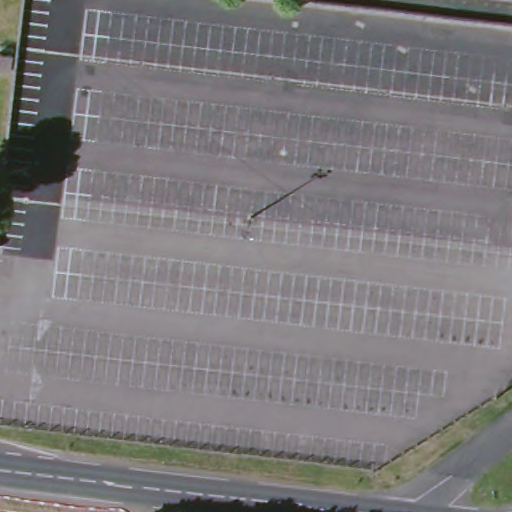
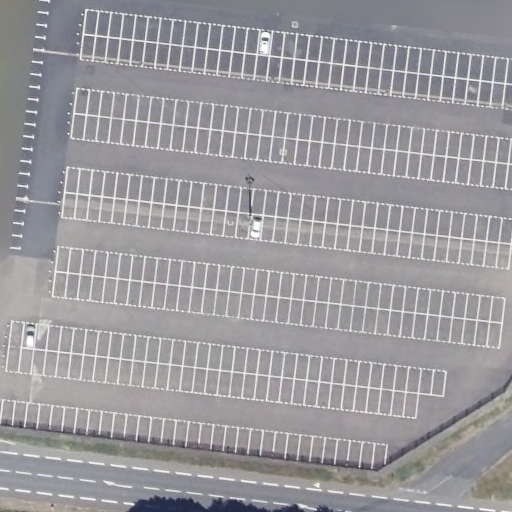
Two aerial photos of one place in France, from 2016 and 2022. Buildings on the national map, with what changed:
unchanged [(0,48),(13,51),(12,69),(0,68),(0,48)]

